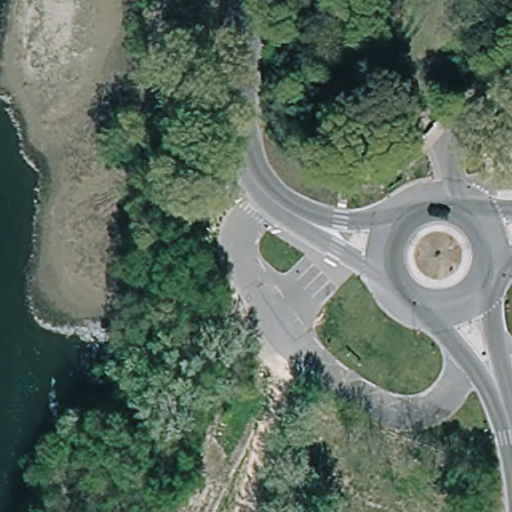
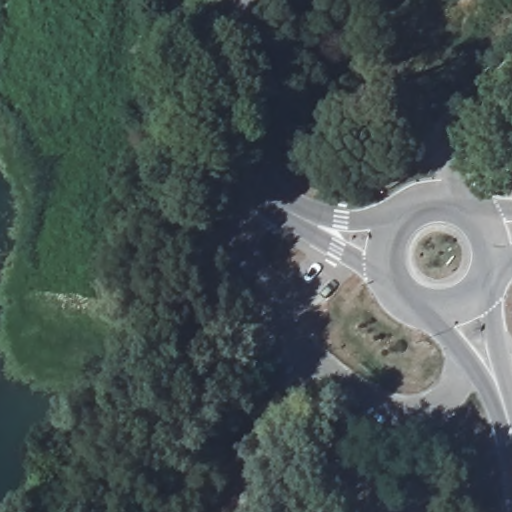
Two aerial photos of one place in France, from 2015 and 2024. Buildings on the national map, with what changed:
[]

